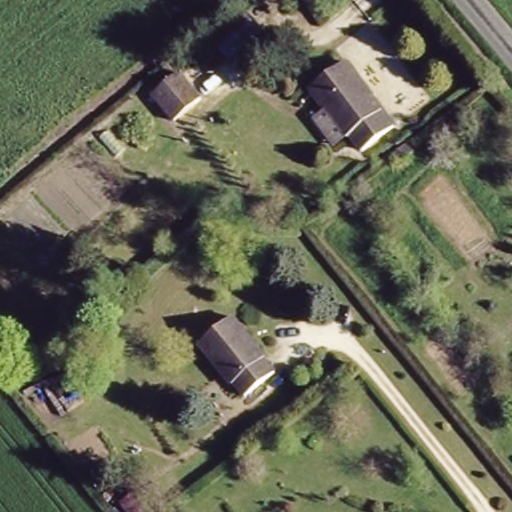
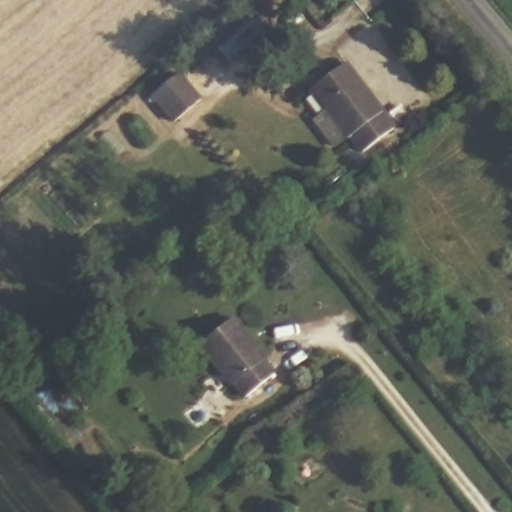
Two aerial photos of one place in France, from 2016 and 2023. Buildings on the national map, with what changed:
unchanged [(215,42),(250,18),(260,31),(228,59),(215,42)]
unchanged [(324,121),(337,111),(318,88),(347,68),(393,127),(367,147),(358,138),(345,149),(324,121)]
unchanged [(205,96),(176,120),(157,97),(183,73),(205,96)]
unchanged [(262,358),(228,384),(202,350),(235,324),(262,358)]

